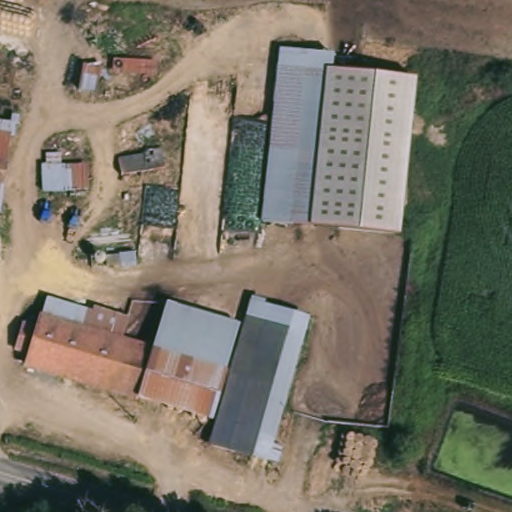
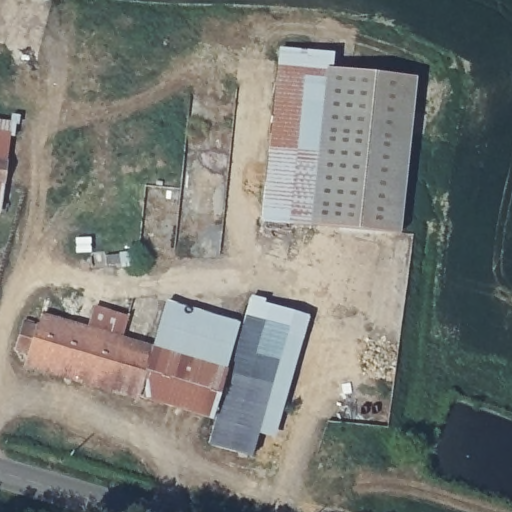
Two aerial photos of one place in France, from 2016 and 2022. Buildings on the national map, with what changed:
unchanged [(335,55),(333,73),(418,84),(403,236),(260,222),(280,52),(335,55)]
unchanged [(17,126),(12,149),(0,147),(0,122),(17,126)]
unchanged [(12,149),(2,216),(0,215),(0,147),(12,149)]
unchanged [(217,422),(263,435),(292,335),(244,322),(251,296),(270,299),(268,303),(313,317),(274,444),(283,448),(278,465),(211,447),(217,422)]
unchanged [(263,435),(217,422),(26,368),(28,358),(12,356),(22,327),(36,332),(40,333),(44,318),(91,330),(95,311),(160,327),(169,302),(244,322),(292,335),(263,435)]

